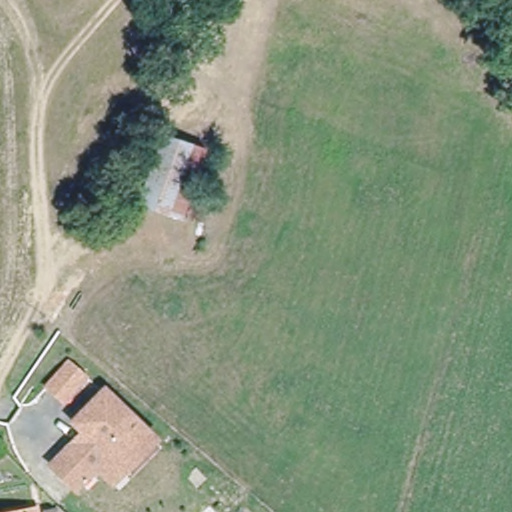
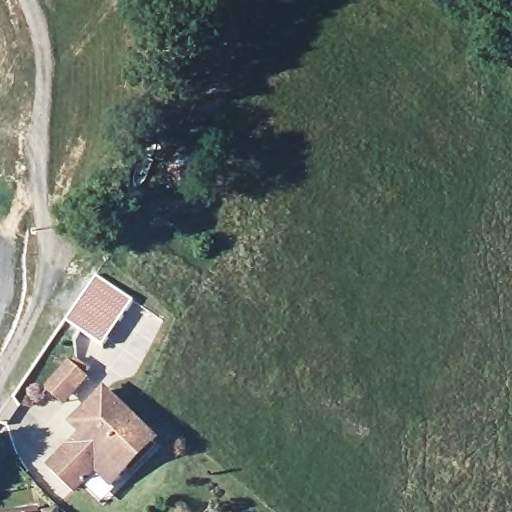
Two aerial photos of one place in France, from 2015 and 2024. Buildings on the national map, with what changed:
unchanged [(116,198),(122,177),(142,182),(161,134),(206,150),(182,216),(116,198)]
new [(96,273),(135,300),(102,347),(64,320),(96,273)]
new [(67,358),(89,377),(62,405),(41,386),(67,358)]
unchanged [(106,475),(102,471),(96,465),(74,487),(52,465),(75,442),(79,447),(90,436),(75,420),(107,390),(134,417),(156,440),(125,470),(112,482),(106,475)]
unchanged [(31,511),(31,512),(28,512),(31,511)]

